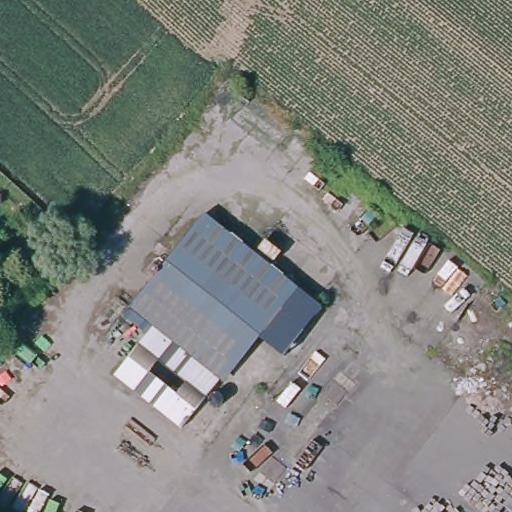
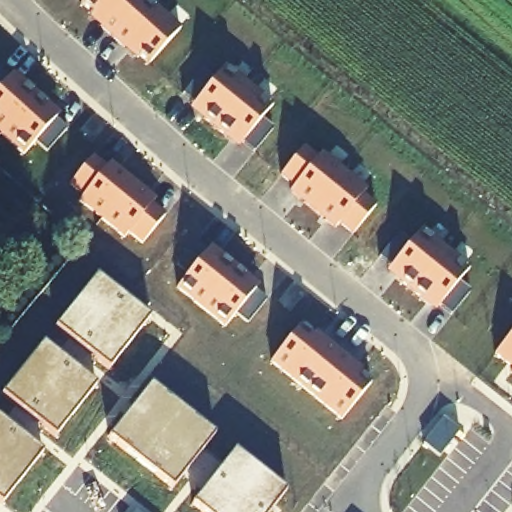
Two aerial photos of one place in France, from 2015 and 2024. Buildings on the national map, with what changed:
new [(103,25),(81,5),(86,0),(144,0),(145,0),(112,38),(100,27),(103,25)]
new [(126,45),(123,49),(112,38),(145,0),(179,31),(148,65),(126,45)]
new [(224,68),(248,87),(215,129),(203,119),(190,109),(194,105),(224,68)]
new [(9,79),(12,75),(25,85),(35,95),(0,135),(0,134),(0,89),(9,79)]
new [(215,129),(248,87),(272,107),(242,144),(238,148),(225,137),(215,129)]
new [(35,95),(46,105),(59,116),(55,120),(23,155),(0,135),(35,95)]
new [(290,192),(294,187),(280,176),(302,149),(316,160),(320,155),(342,173),(312,210),(290,192)]
new [(79,202),(83,196),(70,185),(92,159),(105,170),(110,164),(132,182),(101,220),(79,202)]
new [(339,224),(335,229),(312,210),(342,173),(365,191),(361,196),(375,208),(352,235),(339,224)]
new [(128,234),(124,239),(103,221),(133,184),(155,201),(150,206),(164,217),(142,245),(128,234)]
demolished [(295,283),(214,378),(172,426),(107,369),(134,341),(112,321),(201,206),(295,283)]
new [(420,230),(444,250),(411,291),(400,282),(387,272),(390,267),(420,230)]
new [(206,251),(210,247),(223,258),(234,267),(200,308),(176,288),(206,251)]
new [(411,291),(444,250),(468,270),(438,306),(435,311),(422,300),(411,291)]
new [(234,267),(245,276),(258,287),(255,290),(224,327),(200,308),(234,267)]
new [(147,320),(110,370),(53,328),(95,277),(147,320)]
demolished [(295,283),(320,307),(241,400),(214,378),(295,283)]
new [(271,361),(300,326),(323,345),(326,341),(338,351),(306,390),(271,361)]
new [(512,369),(494,355),(512,332),(512,369)]
new [(95,388),(55,438),(0,395),(42,345),(95,388)]
new [(306,390),(338,351),(350,361),(347,365),(370,384),(341,420),(306,390)]
new [(512,371),(512,375),(510,373),(512,371)]
new [(212,437),(172,490),(107,440),(149,386),(212,437)]
new [(40,455),(1,505),(0,504),(0,421),(40,455)]
new [(283,493),(269,512),(199,512),(191,506),(234,451),(283,493)]

